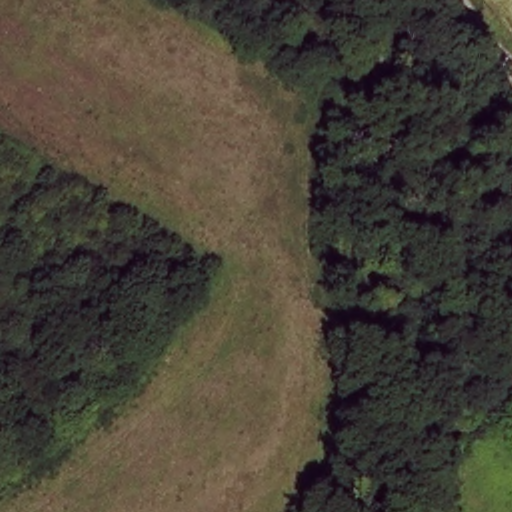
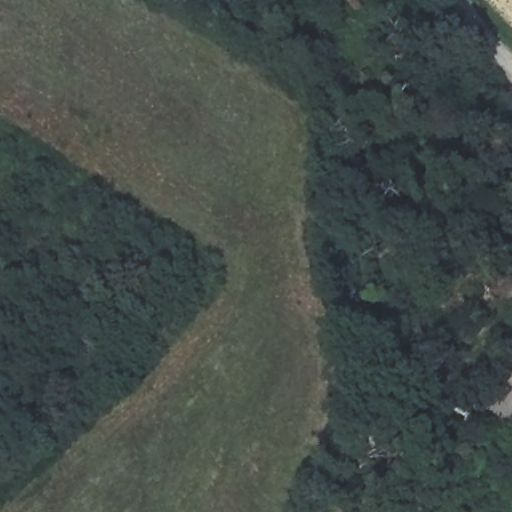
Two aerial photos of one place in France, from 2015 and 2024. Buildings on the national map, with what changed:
unchanged [(430,446),(445,401),(473,415),(460,456),(430,446)]

